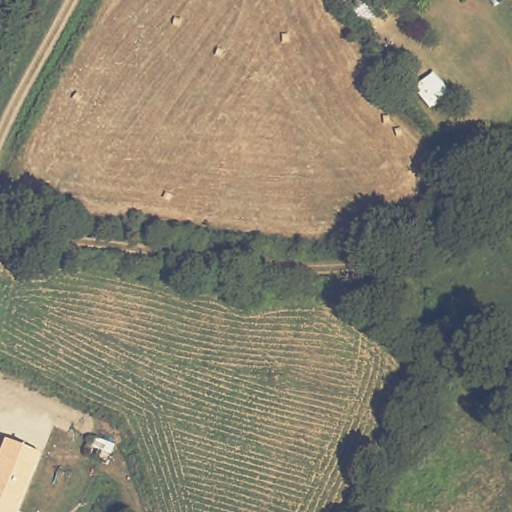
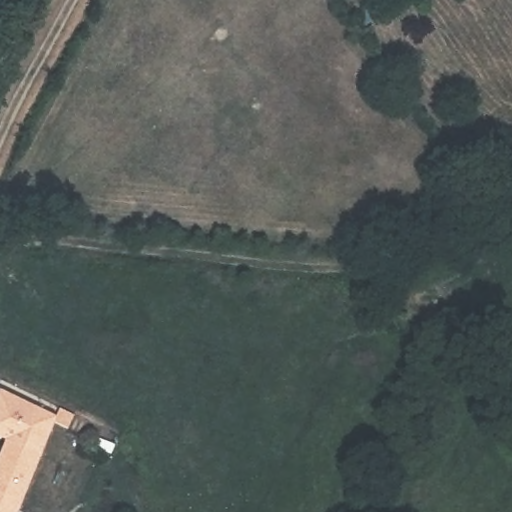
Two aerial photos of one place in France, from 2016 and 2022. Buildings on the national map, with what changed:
new [(0,389),(56,414),(59,406),(76,414),(68,429),(54,423),(40,454),(5,440),(0,438),(0,389)]
unchanged [(0,452),(5,440),(40,454),(17,512),(0,512),(0,452)]

